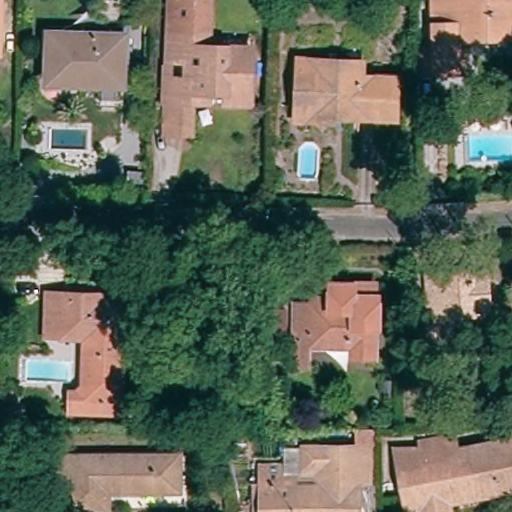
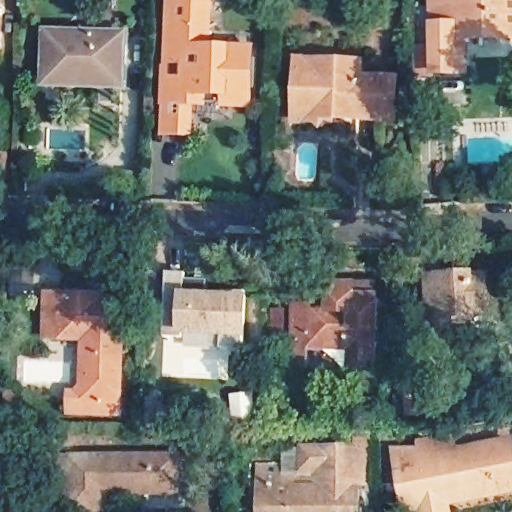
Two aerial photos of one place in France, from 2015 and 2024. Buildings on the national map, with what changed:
unchanged [(255,117),(197,115),(195,147),(161,145),(167,0),(215,0),(213,49),(259,50),(255,117)]
unchanged [(438,50),(437,0),(512,0),(512,40),(471,41),(472,79),(438,80),(417,80),(416,51),(438,50)]
unchanged [(45,87),(47,34),(125,37),(123,90),(45,87)]
unchanged [(300,106),(301,82),(321,82),(321,67),(365,69),(364,84),(381,85),(380,95),(400,95),(399,115),(384,115),(383,125),(337,123),(337,128),(331,128),(324,133),(318,127),(318,117),(316,117),(316,107),(300,106)]
new [(168,275),(186,276),(186,287),(203,287),(203,300),(223,301),(224,293),(246,294),(243,352),(221,352),(222,335),(184,333),(183,340),(165,339),(168,275)]
unchanged [(449,312),(449,337),(424,337),(424,302),(431,302),(431,277),(486,277),(486,292),(471,292),(472,312),(471,312),(449,312)]
unchanged [(299,368),(300,340),(301,306),(336,307),(336,285),(380,286),(379,359),(357,358),(357,348),(314,347),(313,368),(299,368)]
unchanged [(73,415),(74,396),(90,396),(91,341),(45,340),(46,296),(102,297),(102,302),(120,302),(119,340),(125,340),(123,398),(100,397),(100,415),(73,415)]
unchanged [(448,512),(404,512),(394,457),(421,457),(419,450),(453,443),(455,457),(512,447),(512,498),(448,510),(448,512)]
unchanged [(281,473),(281,486),(303,486),(302,456),(371,455),(371,490),(358,490),(358,512),(260,512),(260,473),(281,473)]
unchanged [(109,512),(72,512),(72,500),(55,500),(55,465),(74,465),(74,463),(181,463),(181,500),(109,500),(109,512)]

